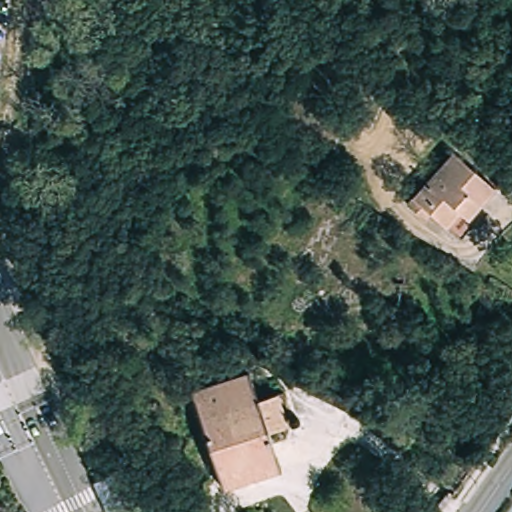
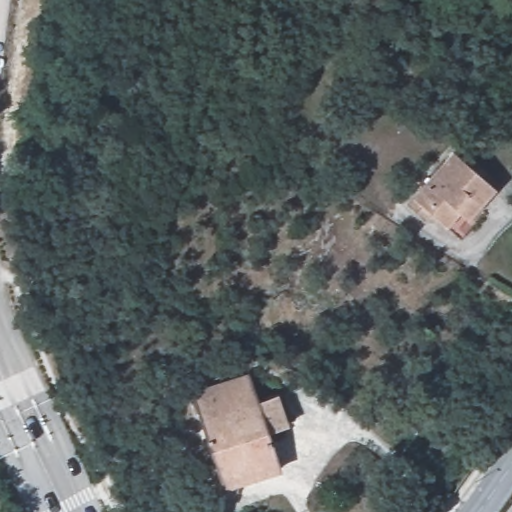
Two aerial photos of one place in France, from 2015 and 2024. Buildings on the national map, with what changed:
unchanged [(491,179),(474,196),(484,206),(459,231),(428,201),(419,209),(402,191),(451,140),(491,179)]
unchanged [(259,376),(261,396),(291,392),(296,425),(268,431),(271,464),(211,475),(193,385),(259,376)]

